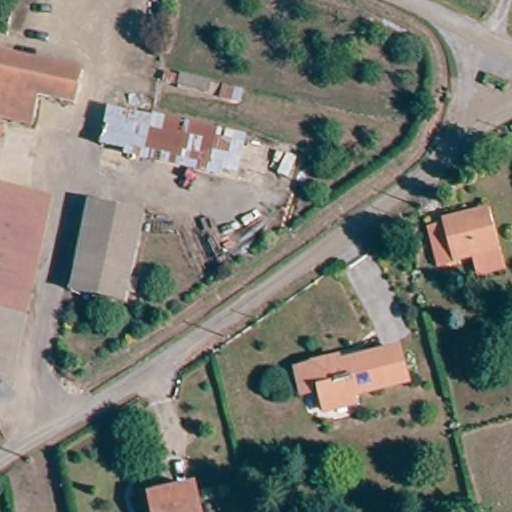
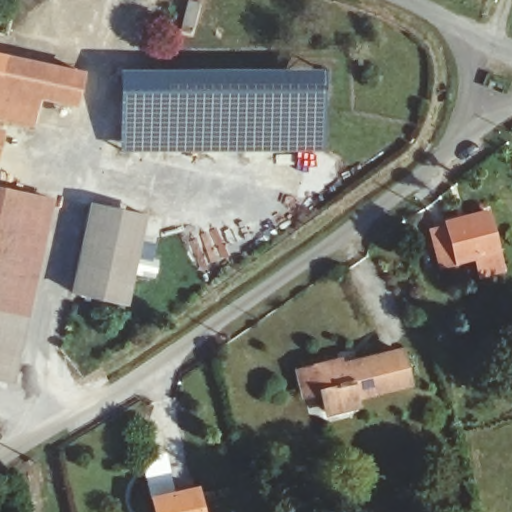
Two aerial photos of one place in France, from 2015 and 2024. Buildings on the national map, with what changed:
unchanged [(39,100),(32,126),(0,120),(0,59),(82,76),(75,108),(39,100)]
new [(325,68),(325,149),(120,149),(119,67),(325,68)]
unchanged [(0,132),(3,133),(0,147),(0,132)]
unchanged [(0,190),(39,198),(0,376),(0,190)]
unchanged [(151,208),(131,297),(78,285),(98,196),(151,208)]
unchanged [(18,387),(0,383),(0,376),(39,198),(58,203),(18,387)]
unchanged [(503,269),(481,275),(476,257),(458,262),(458,261),(442,265),(432,228),(448,224),(448,221),(488,211),(503,269)]
unchanged [(413,378),(359,391),(362,399),(334,406),(328,384),(309,388),(304,366),(344,356),(345,360),(405,346),(413,378)]
unchanged [(198,490),(203,512),(157,512),(154,502),(198,490)]

